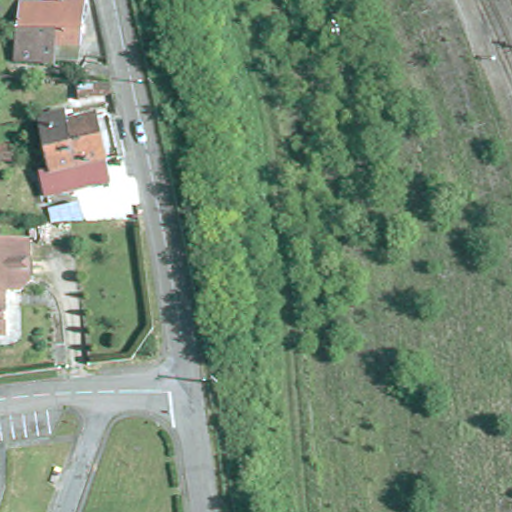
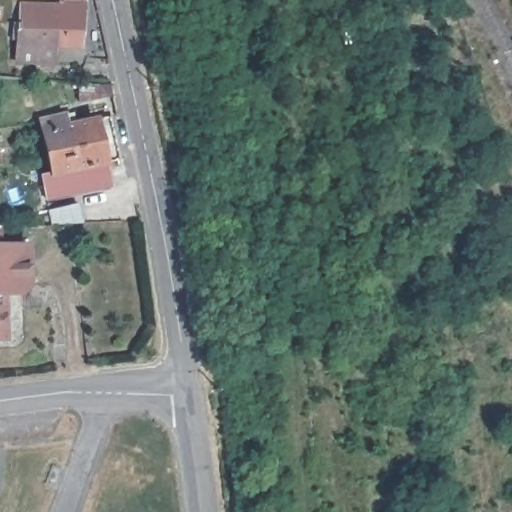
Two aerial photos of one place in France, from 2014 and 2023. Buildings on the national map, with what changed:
unchanged [(59,8),(59,4),(83,6),(81,50),(19,45),(22,5),(59,8)]
unchanged [(54,120),(57,131),(100,121),(110,162),(94,166),(99,186),(37,200),(30,179),(39,176),(26,127),(54,120)]
unchanged [(84,218),(53,219),(50,206),(77,202),(84,218)]
unchanged [(107,218),(102,218),(102,207),(129,207),(129,218),(107,218)]
unchanged [(0,342),(0,229),(4,229),(4,247),(33,247),(35,286),(23,296),(8,296),(8,308),(8,342),(0,342)]

